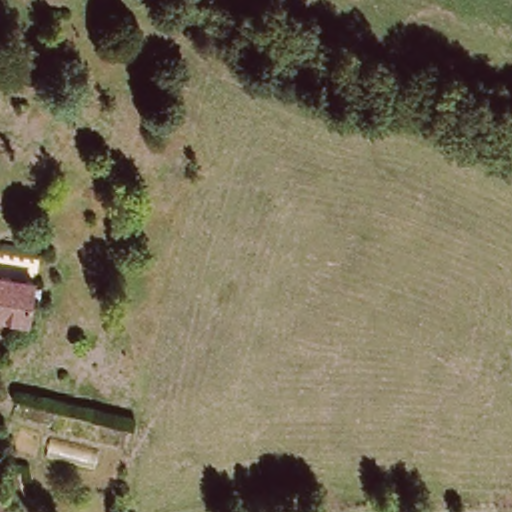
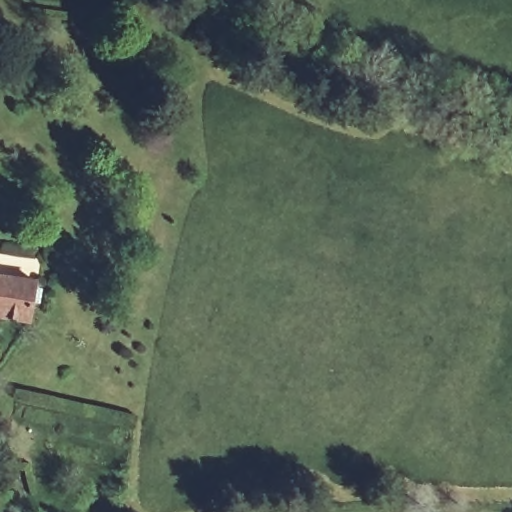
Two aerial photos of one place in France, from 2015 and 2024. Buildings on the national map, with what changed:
unchanged [(27,316),(0,312),(0,274),(35,282),(27,316)]

